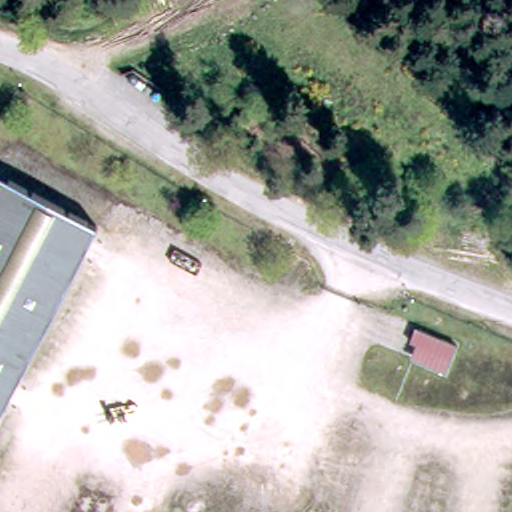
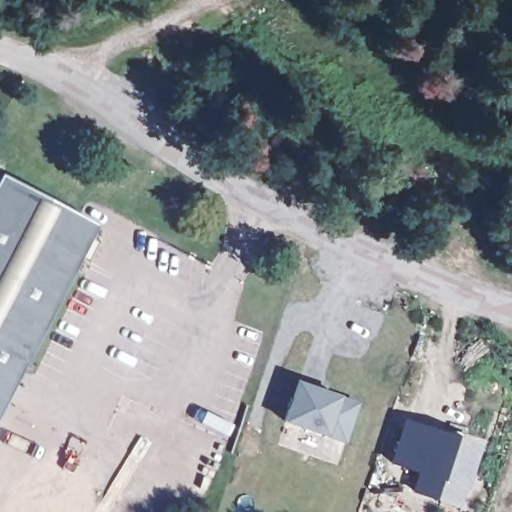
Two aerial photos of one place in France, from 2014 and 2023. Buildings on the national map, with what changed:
unchanged [(1,320),(0,319),(0,183),(96,232),(37,341),(11,326),(1,320)]
unchanged [(11,326),(37,341),(0,407),(0,319),(1,320),(11,326)]
demolished [(408,352),(417,326),(453,338),(445,366),(408,352)]
new [(327,437),(285,423),(297,381),(343,396),(360,403),(346,443),(327,437)]
new [(476,447),(458,505),(416,491),(421,472),(395,462),(407,423),(476,447)]

